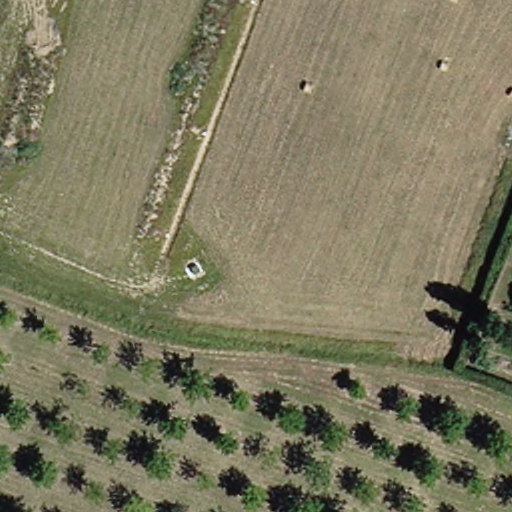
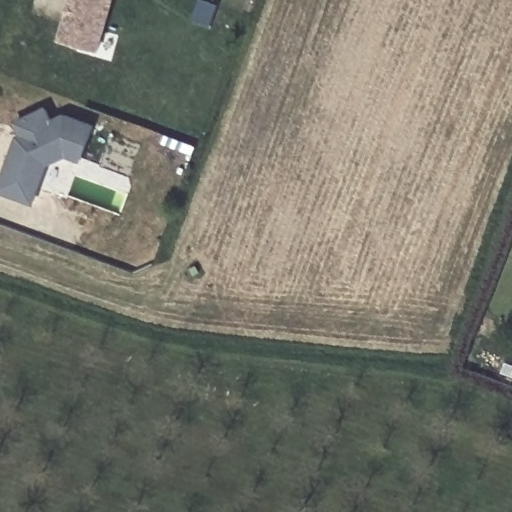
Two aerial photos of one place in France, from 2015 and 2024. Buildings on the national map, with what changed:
new [(58,39),(69,0),(114,0),(100,51),(58,39)]
new [(46,105),(52,117),(64,113),(94,124),(82,161),(66,156),(50,165),(34,205),(0,191),(0,181),(18,133),(13,120),(46,105)]

